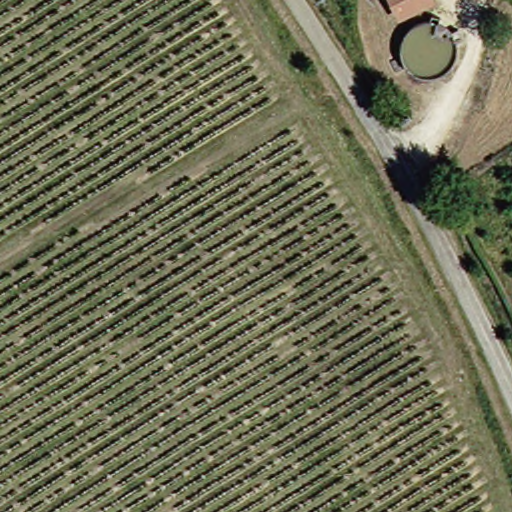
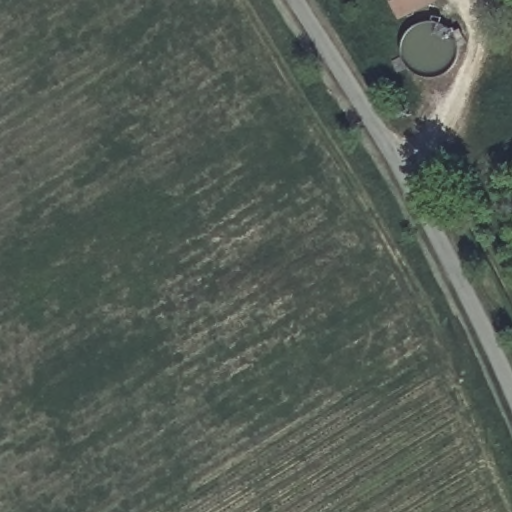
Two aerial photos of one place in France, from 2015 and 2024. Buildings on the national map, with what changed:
unchanged [(404,11),(400,0),(433,0),(404,11)]

